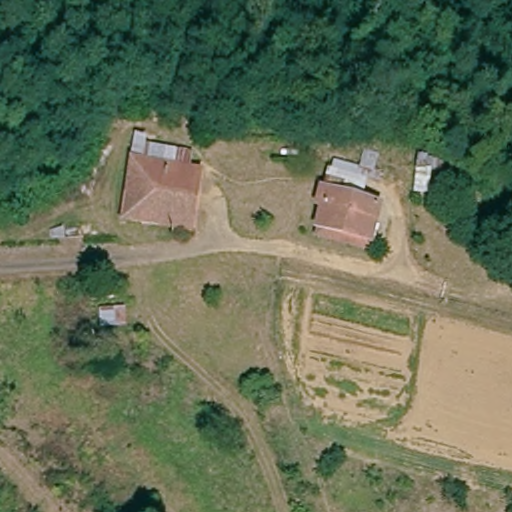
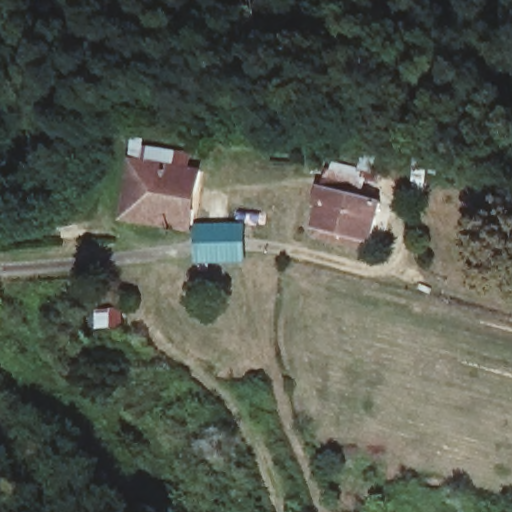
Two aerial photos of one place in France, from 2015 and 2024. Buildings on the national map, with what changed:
unchanged [(116,210),(121,154),(191,162),(184,219),(132,213),(116,210)]
unchanged [(371,172),(367,195),(387,198),(377,253),(310,245),(327,163),(371,172)]
new [(194,224),(244,223),(246,262),(195,264),(194,224)]

